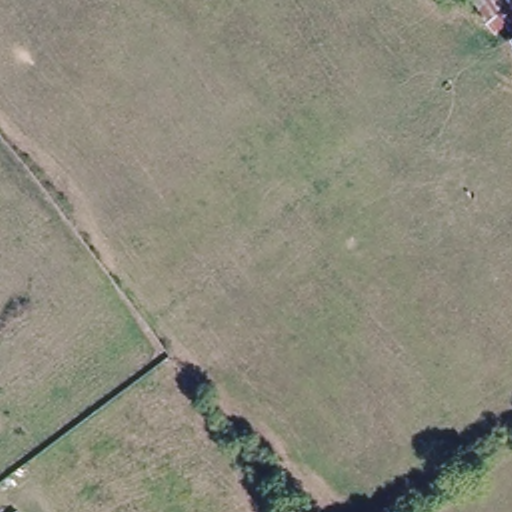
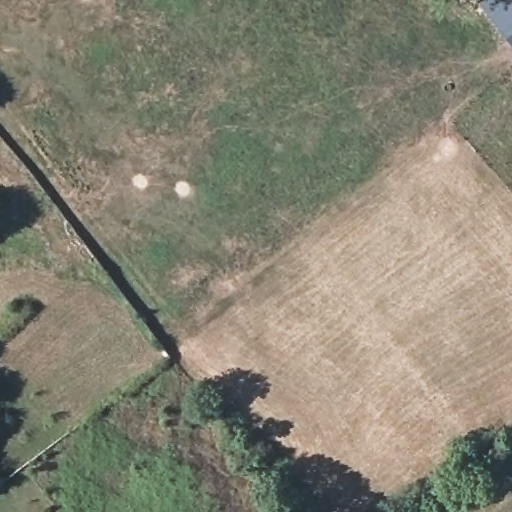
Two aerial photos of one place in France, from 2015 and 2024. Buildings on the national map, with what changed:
unchanged [(512,50),(466,0),(467,0),(512,0),(512,50)]

